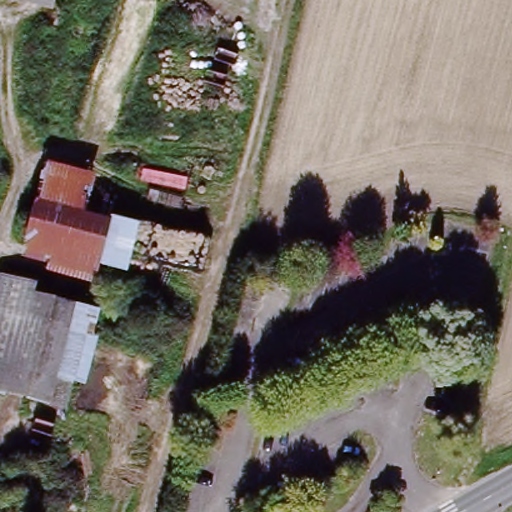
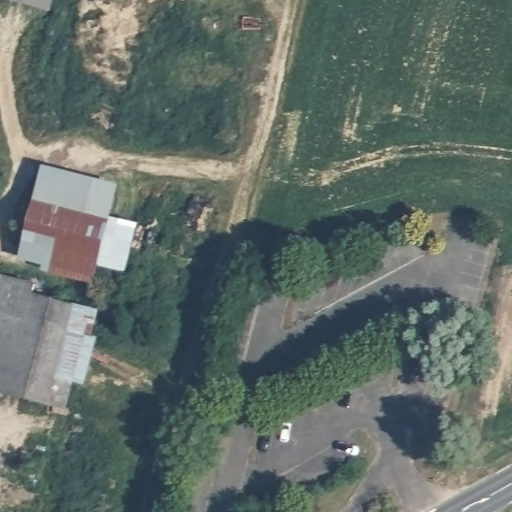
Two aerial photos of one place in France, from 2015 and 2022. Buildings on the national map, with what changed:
unchanged [(53,0),(51,9),(15,0),(53,0)]
unchanged [(43,165),(91,171),(80,209),(138,222),(127,243),(77,232),(32,221),(43,165)]
unchanged [(101,240),(92,277),(22,259),(32,221),(77,232),(101,240)]
unchanged [(81,385),(73,413),(0,393),(0,297),(3,275),(42,286),(108,301),(81,385)]

